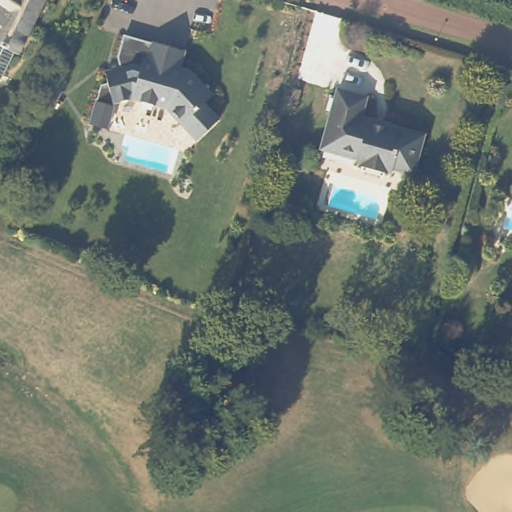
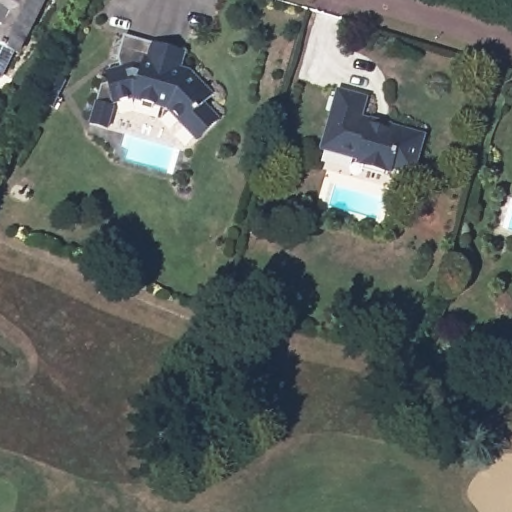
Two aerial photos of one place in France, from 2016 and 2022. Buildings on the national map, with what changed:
unchanged [(19,53),(6,80),(1,82),(0,82),(0,33),(3,27),(0,24),(0,0),(49,0),(22,54),(19,53)]
unchanged [(216,96),(207,105),(222,121),(201,143),(170,110),(136,100),(148,59),(150,60),(155,43),(176,49),(189,53),(184,70),(194,73),(216,96)]
unchanged [(363,111),(372,115),(373,110),(390,116),(388,124),(391,124),(425,131),(415,168),(396,160),(393,169),(358,159),(360,151),(322,139),(340,84),(368,92),(363,111)]

